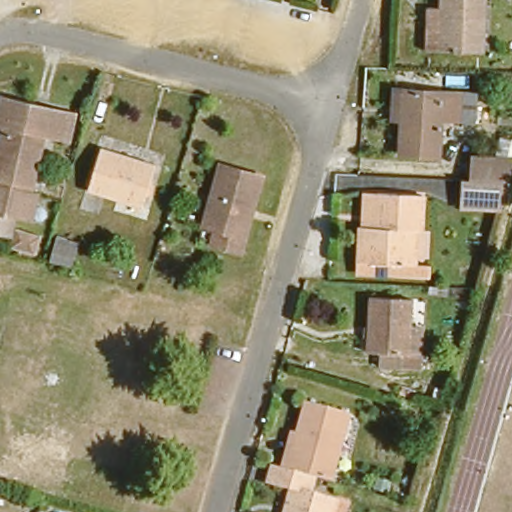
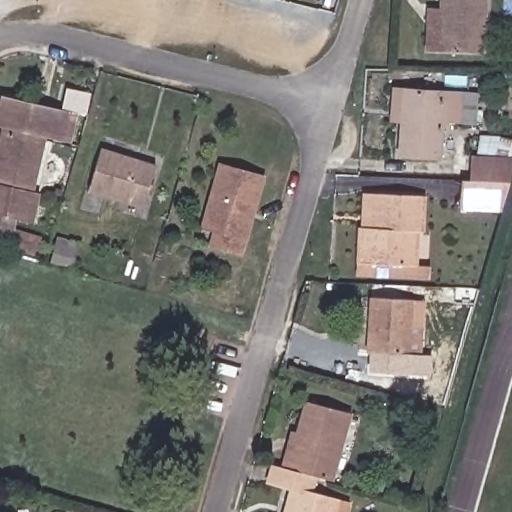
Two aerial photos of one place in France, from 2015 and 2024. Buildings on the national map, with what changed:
unchanged [(421,48),(421,5),(438,6),(439,0),(483,0),(485,49),(421,48)]
unchanged [(447,116),(431,116),(432,156),(394,156),(393,96),(446,94),(447,116)]
unchanged [(47,109),(41,134),(32,131),(31,137),(36,139),(16,216),(5,214),(0,231),(0,130),(1,124),(0,123),(0,99),(0,97),(47,109)]
unchanged [(139,207),(87,192),(100,148),(153,164),(139,207)]
unchanged [(512,156),(512,161),(507,177),(499,205),(498,208),(460,209),(460,176),(468,176),(469,155),(512,156)]
unchanged [(205,220),(222,164),(265,175),(242,256),(214,247),(220,225),(205,220)]
unchanged [(418,201),(417,246),(409,246),(408,275),(365,275),(365,239),(374,239),(374,201),(418,201)]
unchanged [(25,252),(5,246),(8,234),(29,239),(25,252)]
unchanged [(72,273),(53,268),(56,255),(76,259),(72,273)]
unchanged [(425,370),(380,367),(381,350),(368,350),(373,293),(410,296),(406,351),(425,352),(425,370)]
unchanged [(310,416),(302,414),(307,401),(350,415),(327,481),(311,476),(283,468),(288,448),(294,428),(300,430),(305,432),(310,416)]
unchanged [(283,468),(311,476),(307,492),(335,500),(332,512),(282,512),(287,492),(265,486),(270,465),(283,468)]

